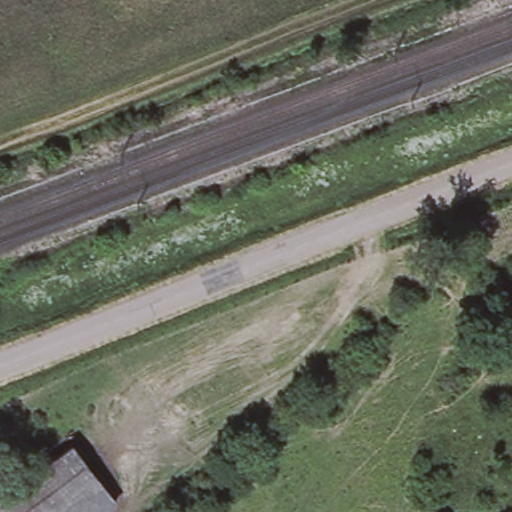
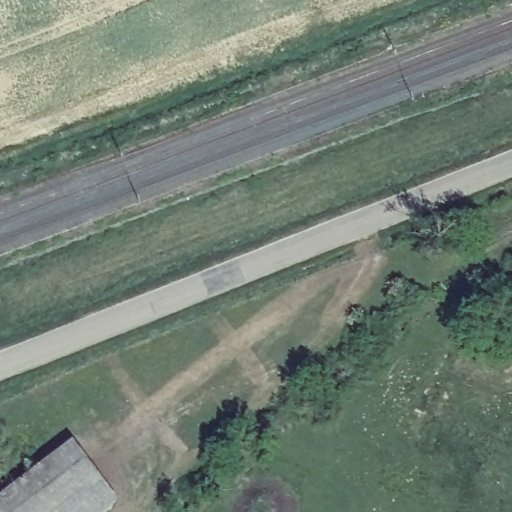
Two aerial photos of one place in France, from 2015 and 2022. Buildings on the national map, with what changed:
unchanged [(98,512),(0,512),(0,491),(74,437),(121,495),(98,512)]

